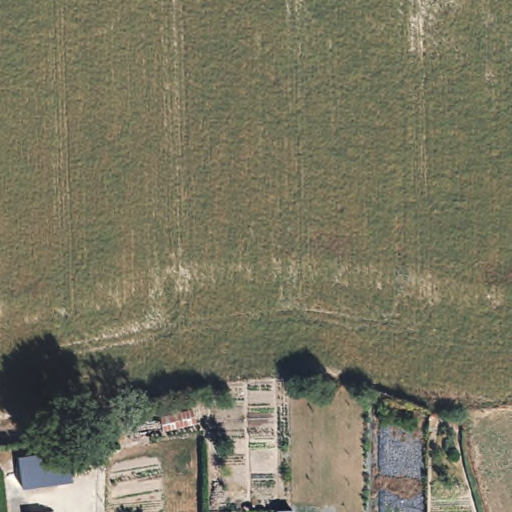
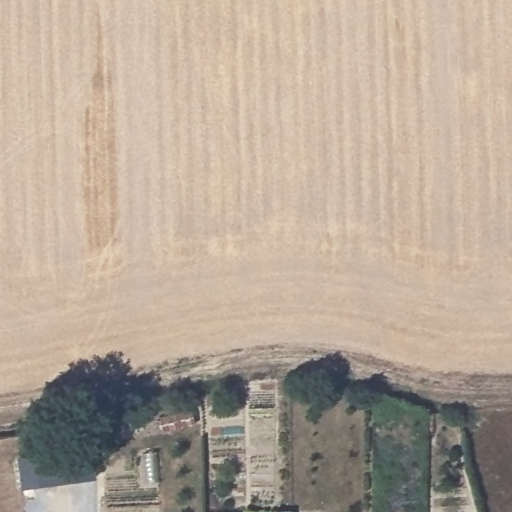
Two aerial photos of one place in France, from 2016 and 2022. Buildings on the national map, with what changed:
unchanged [(71,443),(78,475),(30,483),(24,451),(71,443)]
unchanged [(284,508),(284,512),(269,512),(269,508),(284,508)]

